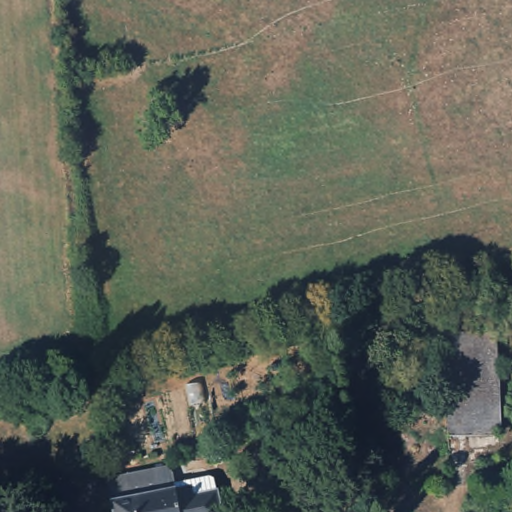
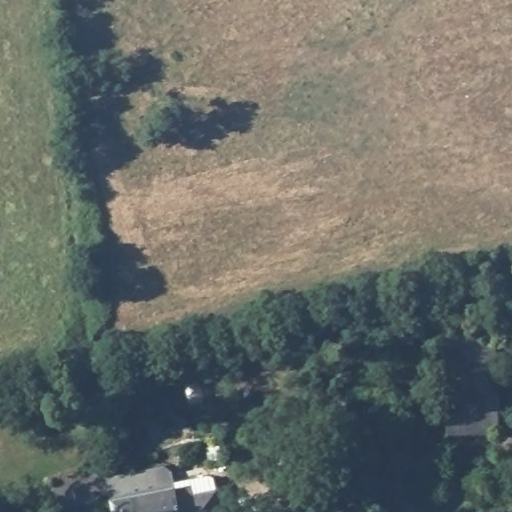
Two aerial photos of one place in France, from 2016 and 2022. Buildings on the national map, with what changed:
unchanged [(493,334),(497,483),(449,485),(444,335),(493,334)]
unchanged [(176,467),(180,484),(217,478),(222,491),(225,512),(118,512),(112,478),(176,467)]

